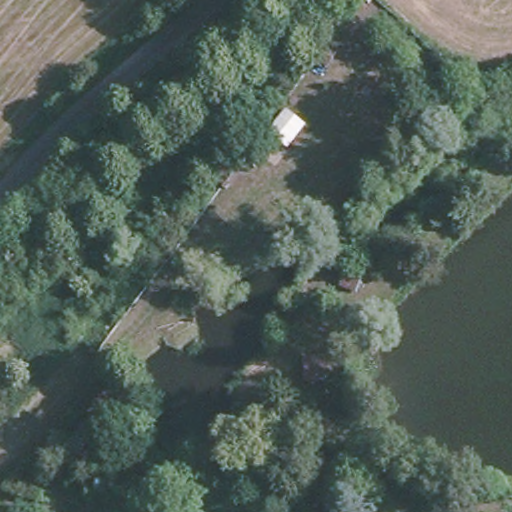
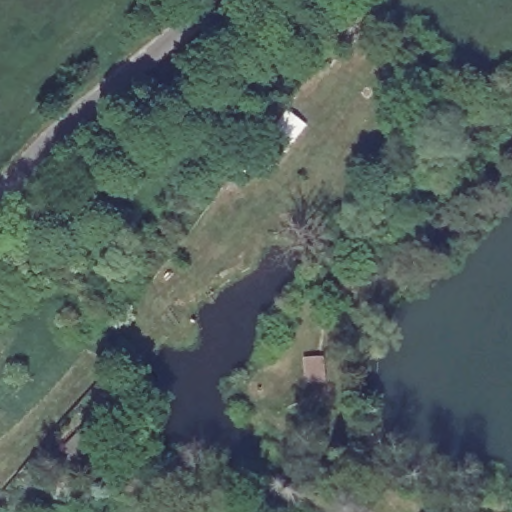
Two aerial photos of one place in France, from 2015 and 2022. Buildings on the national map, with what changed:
unchanged [(81,456),(72,443),(98,417),(106,429),(81,456)]

